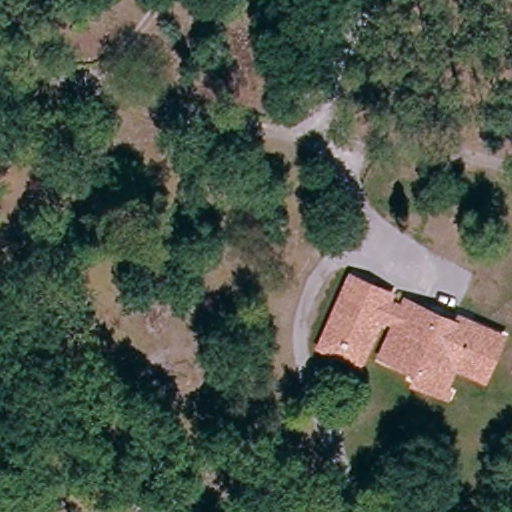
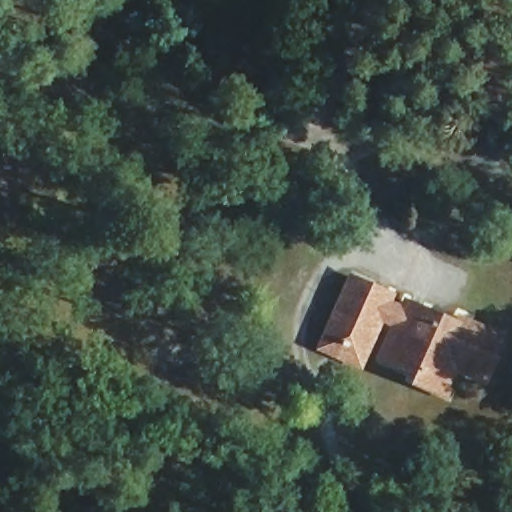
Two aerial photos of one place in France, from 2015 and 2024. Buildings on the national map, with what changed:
unchanged [(506,341),(487,385),(458,372),(447,399),(415,385),(418,376),(382,359),(395,328),(382,321),(361,370),(320,351),(351,282),(390,299),(387,308),(401,314),(406,305),(436,318),(461,330),(463,323),(506,341)]

